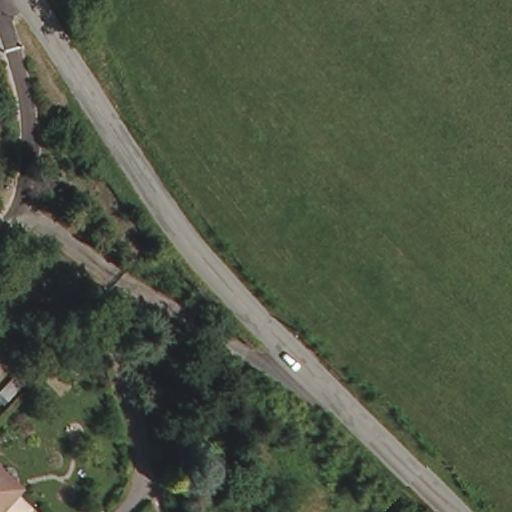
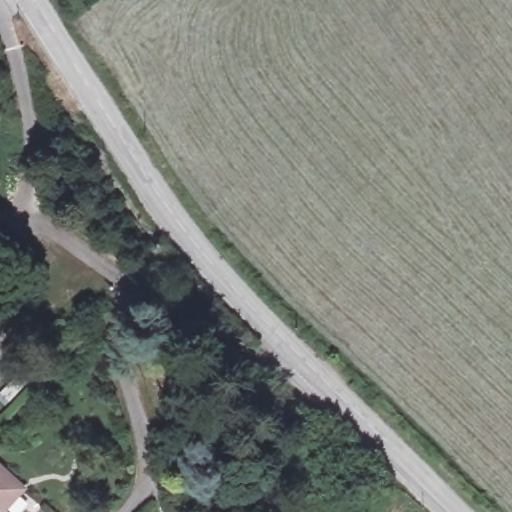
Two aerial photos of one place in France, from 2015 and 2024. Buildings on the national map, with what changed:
unchanged [(0,508),(0,470),(19,488),(0,508)]

